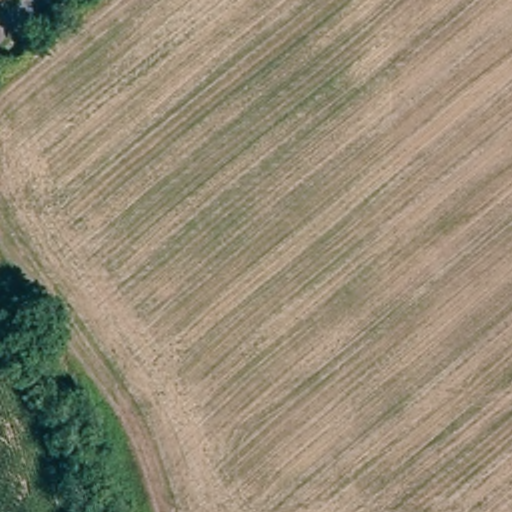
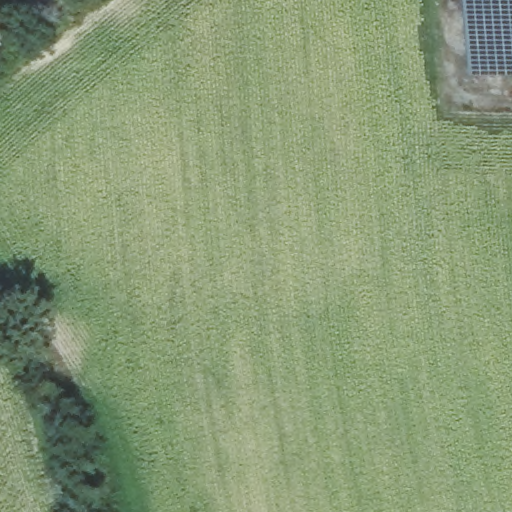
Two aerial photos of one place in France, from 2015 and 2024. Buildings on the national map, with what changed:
new [(512,77),(475,77),(473,0),(512,0),(512,77)]

